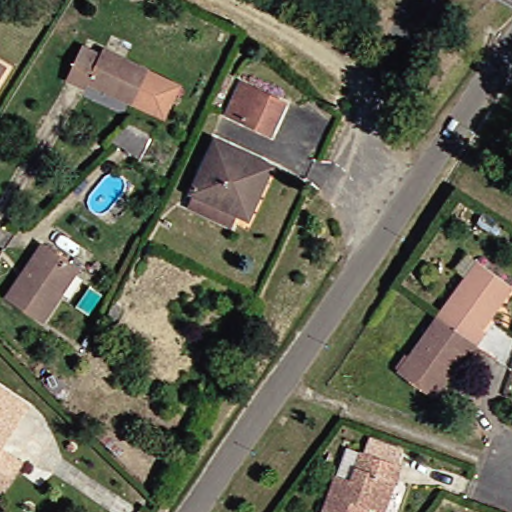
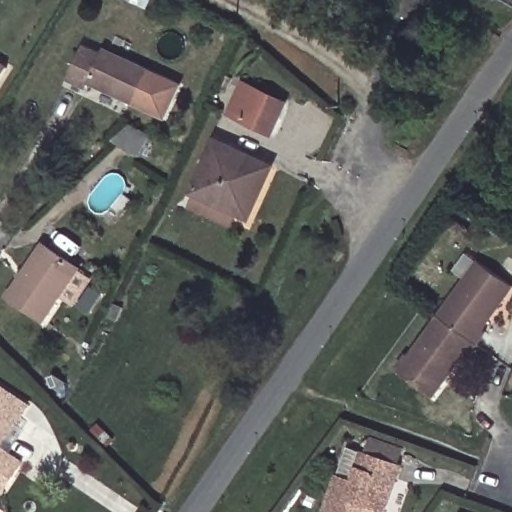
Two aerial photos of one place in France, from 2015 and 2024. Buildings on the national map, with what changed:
unchanged [(77,80),(92,46),(112,55),(113,51),(118,42),(136,50),(132,60),(189,86),(175,119),(99,84),(96,89),(77,80)]
unchanged [(12,69),(0,88),(0,61),(12,69)]
unchanged [(246,84),(289,104),(276,134),(232,114),(246,84)]
unchanged [(230,141),(280,163),(256,215),(250,212),(244,225),(205,207),(210,195),(206,193),(230,141)]
unchanged [(48,244),(84,269),(48,322),(12,297),(48,244)]
unchanged [(483,262),(512,284),(512,295),(487,330),(490,332),(481,345),(443,318),(483,262)]
unchanged [(121,309),(115,322),(106,318),(113,305),(121,309)]
unchanged [(443,318),(481,345),(472,358),(468,355),(438,398),(403,373),(443,318)]
unchanged [(8,444),(0,456),(0,385),(12,393),(1,409),(15,419),(22,423),(8,444)]
unchanged [(328,512),(342,471),(358,477),(368,448),(405,461),(388,508),(381,506),(379,512),(330,512),(328,512)]

